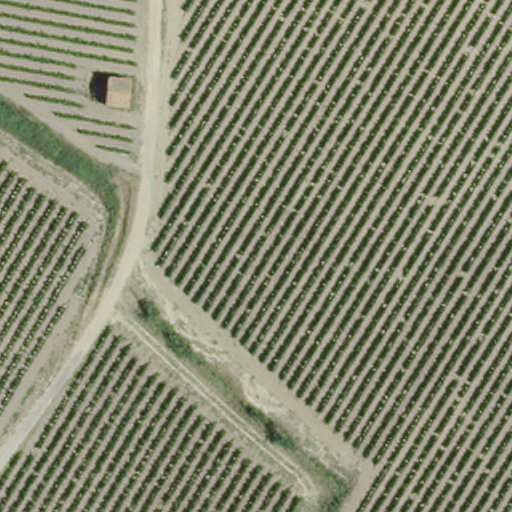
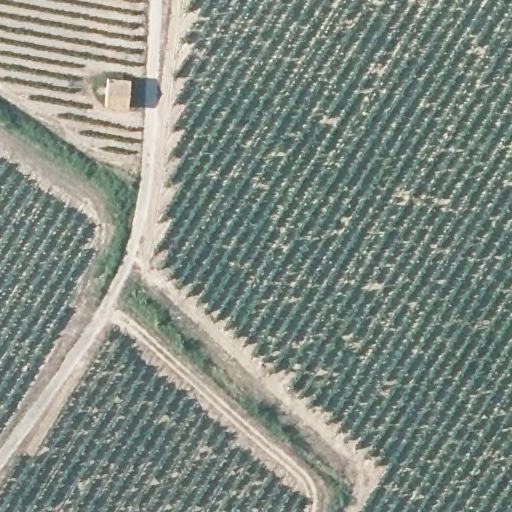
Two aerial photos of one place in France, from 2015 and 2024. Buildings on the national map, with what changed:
unchanged [(134,106),(104,103),(105,75),(136,78),(134,106)]

